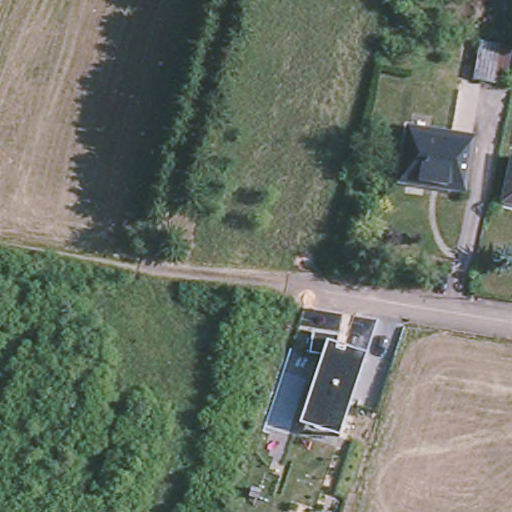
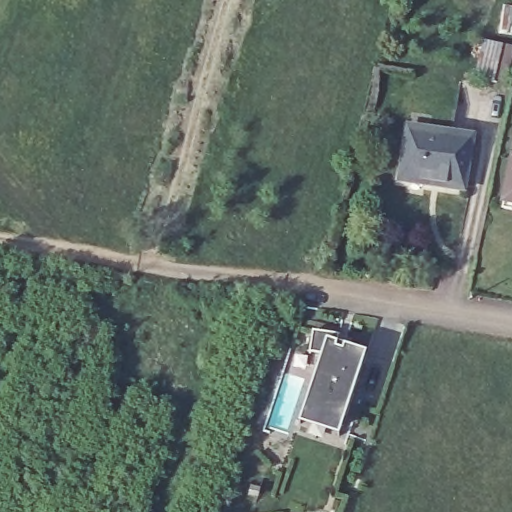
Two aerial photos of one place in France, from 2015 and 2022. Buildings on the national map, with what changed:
unchanged [(479,40),(510,47),(510,54),(512,54),(512,86),(471,78),(479,40)]
unchanged [(400,176),(409,125),(430,128),(418,178),(400,176)]
unchanged [(430,128),(471,134),(462,185),(418,178),(430,128)]
unchanged [(507,156),(512,157),(512,202),(496,198),(507,156)]
unchanged [(322,354),(311,353),(313,332),(340,335),(339,346),(366,354),(340,433),(300,423),(322,354)]

